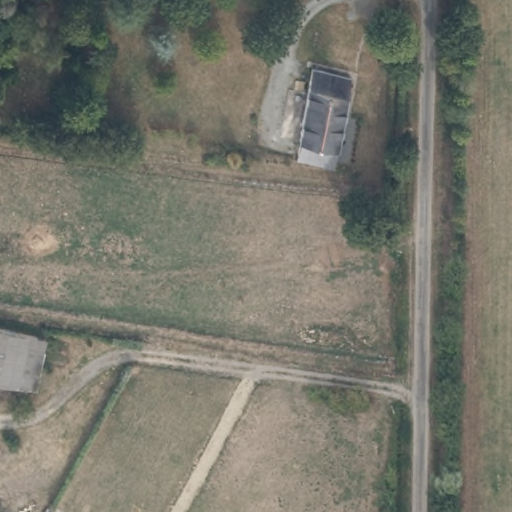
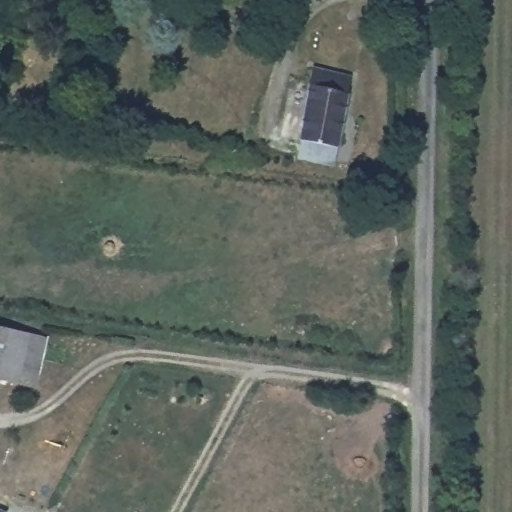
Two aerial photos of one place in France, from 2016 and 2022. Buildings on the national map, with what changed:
unchanged [(313,131),(303,129),(317,63),(354,70),(342,137),(339,154),(310,149),(313,131)]
unchanged [(13,384),(0,381),(0,331),(24,336),(46,341),(36,375),(30,373),(27,387),(13,384)]
unchanged [(0,512),(0,510),(5,512),(0,512)]

